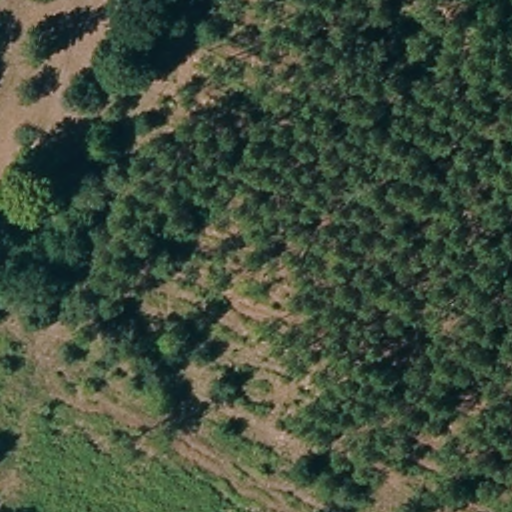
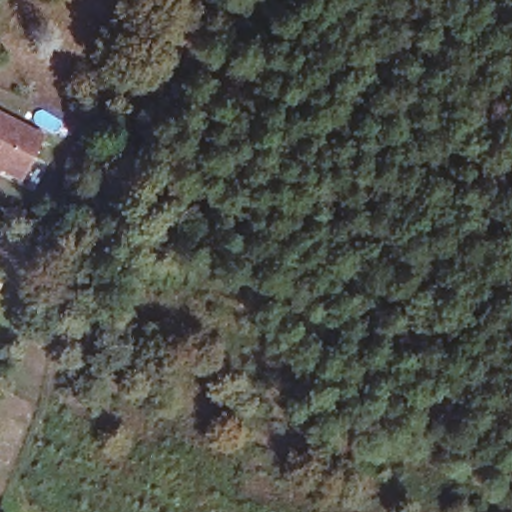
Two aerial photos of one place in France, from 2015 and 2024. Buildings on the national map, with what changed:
new [(43,137),(22,179),(1,169),(0,171),(0,115),(43,137)]
new [(1,284),(0,287),(0,283),(1,284)]

